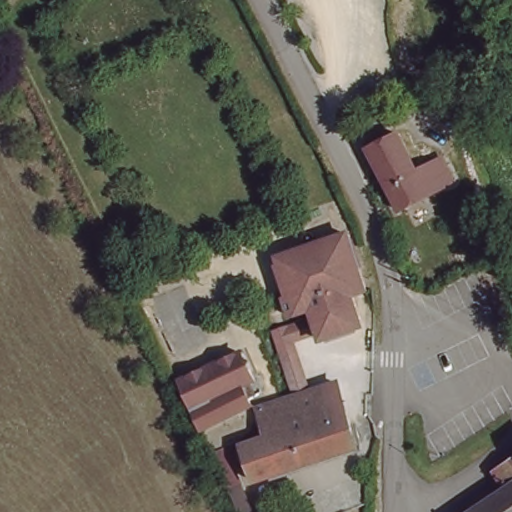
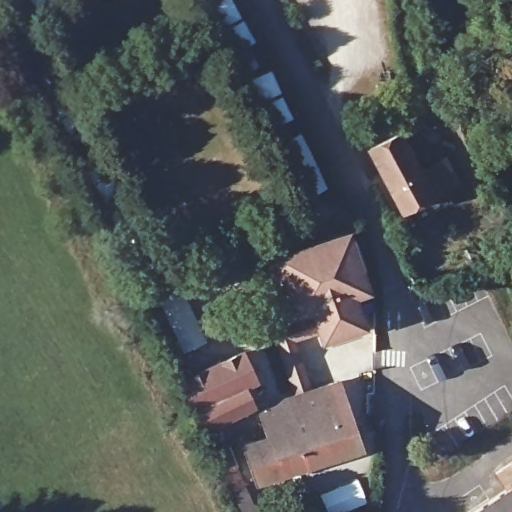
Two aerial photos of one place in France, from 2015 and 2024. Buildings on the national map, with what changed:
unchanged [(420,166),(444,152),(457,176),(405,207),(372,147),(400,130),(420,166)]
unchanged [(463,202),(459,205),(455,197),(460,194),(463,202)]
unchanged [(348,323),(320,332),(317,325),(313,311),(310,302),(290,308),(283,290),(290,287),(277,248),(346,226),(364,283),(350,289),(360,320),(348,323)]
unchanged [(430,260),(418,266),(411,250),(421,244),(430,260)]
unchanged [(352,442),(249,475),(238,440),(262,432),(254,402),(293,390),(286,367),(273,324),(313,311),(317,325),(291,334),(300,362),(307,386),(333,377),(352,442)]
unchanged [(250,375),(245,377),(249,391),(242,393),(243,398),(193,416),(178,365),(240,345),(250,375)]
unchanged [(508,491),(498,474),(512,465),(512,512),(477,512),(508,491)]
unchanged [(257,512),(237,512),(222,482),(240,473),(257,512)]
unchanged [(319,512),(316,512),(318,511),(319,512)]

